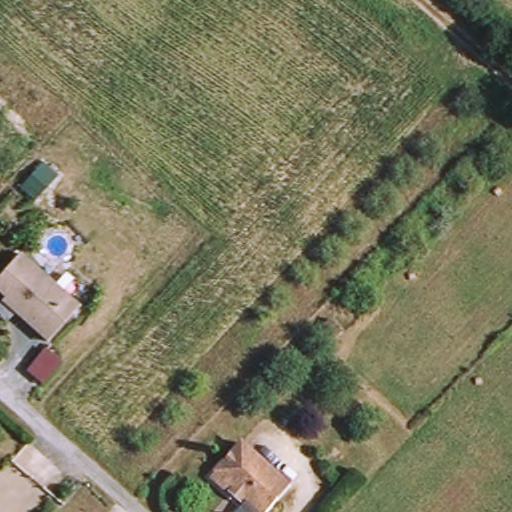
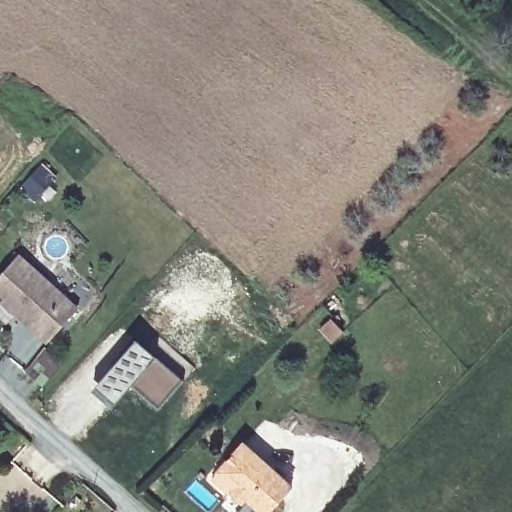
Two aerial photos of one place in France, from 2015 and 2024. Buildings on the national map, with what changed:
unchanged [(0,296),(0,268),(13,253),(73,305),(44,339),(11,311),(0,302),(0,297),(0,296)]
new [(139,338),(187,380),(160,410),(138,391),(126,404),(100,382),(113,368),(139,338)]
unchanged [(217,479),(247,446),(290,488),(295,493),(284,505),(277,512),(263,512),(253,502),(247,508),(234,496),(217,479)]

